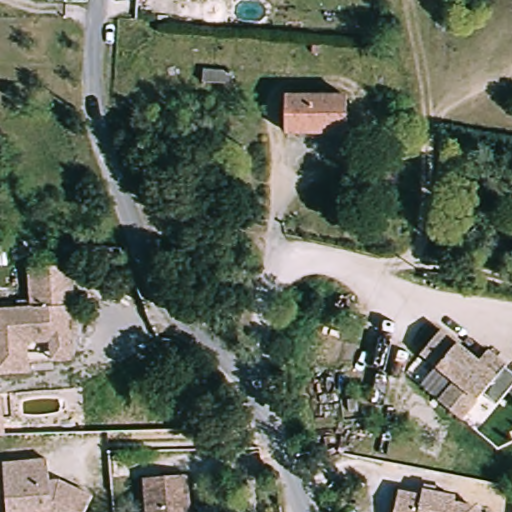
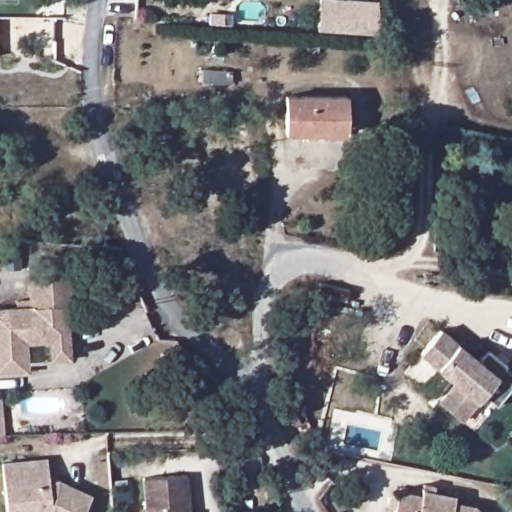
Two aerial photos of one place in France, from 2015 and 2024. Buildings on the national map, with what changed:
new [(378,36),(317,32),(319,0),(363,0),(380,1),(378,36)]
unchanged [(343,140),(282,136),(281,100),(342,102),(343,140)]
unchanged [(80,312),(72,312),(71,355),(53,354),(53,345),(28,345),(27,377),(0,376),(0,311),(38,311),(39,271),(80,272),(80,312)]
unchanged [(438,328),(476,360),(485,348),(502,362),(501,363),(512,373),(512,379),(493,401),(480,391),(460,417),(437,400),(453,380),(418,352),(438,328)]
unchanged [(5,430),(0,431),(0,407),(5,406),(5,430)]
unchanged [(8,511),(9,461),(53,462),(53,484),(62,485),(97,498),(92,512),(8,512),(8,511)]
unchanged [(148,480),(192,479),(193,512),(143,512),(143,510),(150,510),(148,480)]
unchanged [(401,497),(424,501),(425,495),(457,500),(457,506),(477,509),(479,512),(399,512),(401,497)]

